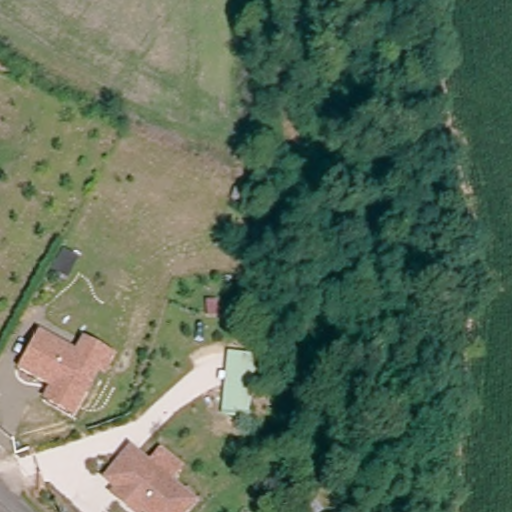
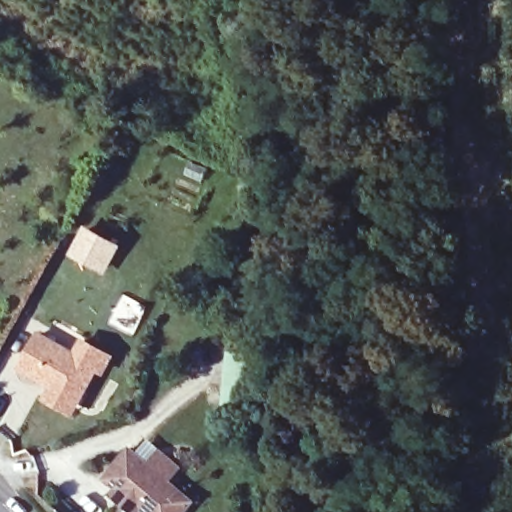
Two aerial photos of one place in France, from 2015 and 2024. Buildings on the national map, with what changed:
new [(87,227),(117,244),(105,266),(75,250),(87,227)]
unchanged [(79,399),(21,366),(39,333),(77,353),(85,339),(112,354),(104,369),(97,366),(79,399)]
unchanged [(107,476),(132,446),(194,499),(183,512),(150,512),(142,506),(137,512),(120,497),(113,491),(118,486),(107,476)]

